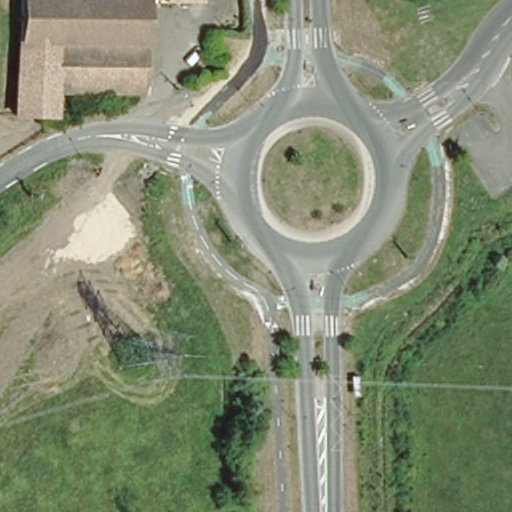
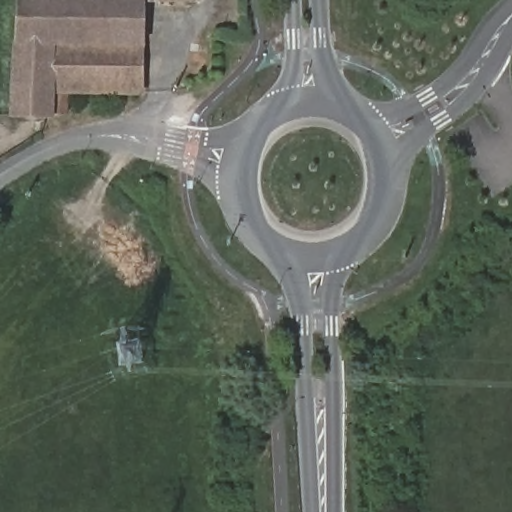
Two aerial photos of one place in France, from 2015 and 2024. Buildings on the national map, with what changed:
unchanged [(15,0),(140,0),(138,94),(50,91),(50,116),(12,114),(15,0)]

